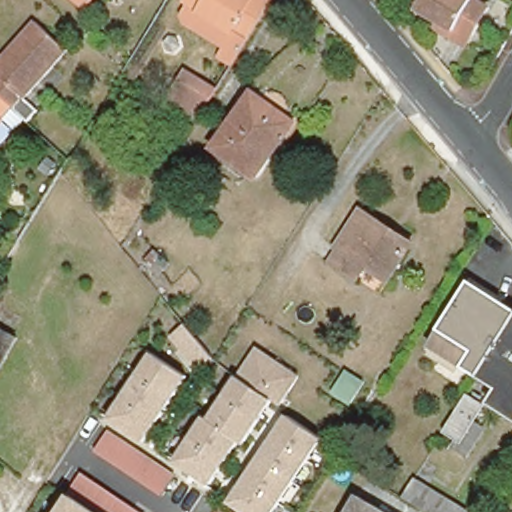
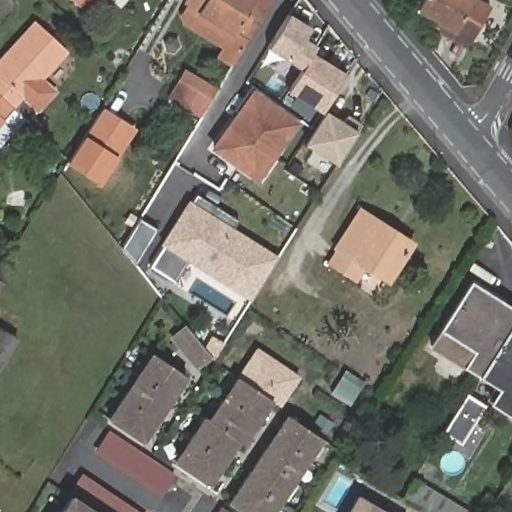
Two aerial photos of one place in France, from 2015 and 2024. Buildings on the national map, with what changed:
unchanged [(83,8),(74,0),(91,0),(83,8)]
unchanged [(244,39),(230,30),(228,33),(198,14),(199,10),(185,1),(186,0),(268,0),(244,39)]
unchanged [(423,0),(475,0),(487,7),(468,40),(417,10),(423,0)]
unchanged [(199,10),(198,14),(228,33),(230,30),(244,39),(229,65),(214,56),(220,46),(180,21),(180,16),(185,1),(199,10)]
new [(289,15),(310,29),(304,39),(316,46),(312,54),(302,69),(268,47),(289,15)]
unchanged [(0,93),(0,63),(37,22),(67,50),(26,97),(38,110),(29,121),(14,107),(0,93)]
new [(302,69),(312,54),(346,75),(323,111),(288,91),(302,69)]
unchanged [(167,90),(178,73),(211,94),(200,111),(167,90)]
unchanged [(3,118),(5,120),(0,126),(0,93),(14,107),(3,118)]
unchanged [(294,123),(257,176),(215,146),(253,94),(294,123)]
new [(100,185),(67,164),(103,107),(136,129),(100,185)]
new [(337,165),(304,144),(323,111),(357,131),(337,165)]
new [(193,192),(236,219),(221,243),(229,249),(235,239),(272,261),(249,298),(212,276),(217,268),(209,263),(204,270),(186,259),(172,281),(147,265),(193,192)]
unchanged [(362,266),(352,279),(327,262),(335,249),(332,247),(356,209),(387,229),(408,243),(405,248),(383,281),(362,266)]
new [(139,222),(156,233),(138,263),(121,252),(139,222)]
demolished [(169,267),(157,280),(142,267),(155,254),(169,267)]
unchanged [(480,376),(433,345),(470,283),(512,309),(512,326),(480,376)]
unchanged [(198,372),(168,336),(185,326),(213,360),(198,372)]
unchanged [(491,402),(500,388),(480,376),(512,326),(512,416),(491,402)]
unchanged [(0,370),(0,327),(18,337),(0,370)]
unchanged [(280,409),(275,403),(247,446),(242,443),(213,485),(173,461),(203,417),(209,420),(257,348),(300,378),(280,409)]
unchanged [(105,419),(150,353),(188,377),(146,445),(105,419)]
unchanged [(468,395),(485,406),(476,421),(485,428),(470,455),(454,445),(457,441),(444,432),(468,395)]
unchanged [(242,512),(229,503),(288,416),(326,440),(276,512),(242,512)]
unchanged [(163,495),(97,450),(110,431),(176,475),(163,495)]
unchanged [(141,512),(57,512),(82,473),(141,512)]
unchanged [(383,512),(344,512),(354,495),(383,512)]
unchanged [(462,512),(440,512),(446,502),(462,512)]
unchanged [(231,512),(219,512),(222,506),(231,512)]

